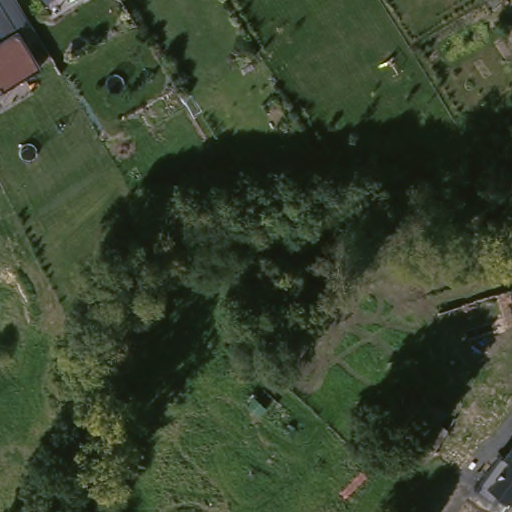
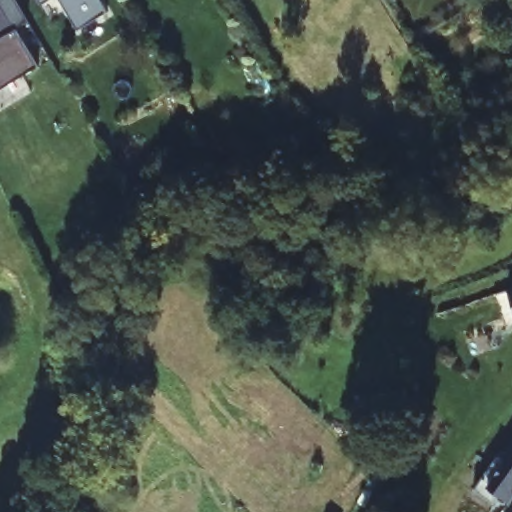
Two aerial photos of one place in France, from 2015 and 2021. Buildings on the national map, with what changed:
unchanged [(40,67),(6,86),(1,83),(0,83),(0,0),(5,0),(40,67)]
new [(43,4),(42,0),(49,0),(43,4)]
new [(62,0),(101,0),(108,12),(81,30),(62,0)]
unchanged [(508,291),(512,290),(512,305),(508,291)]
unchanged [(481,492),(512,449),(512,500),(506,508),(481,492)]

